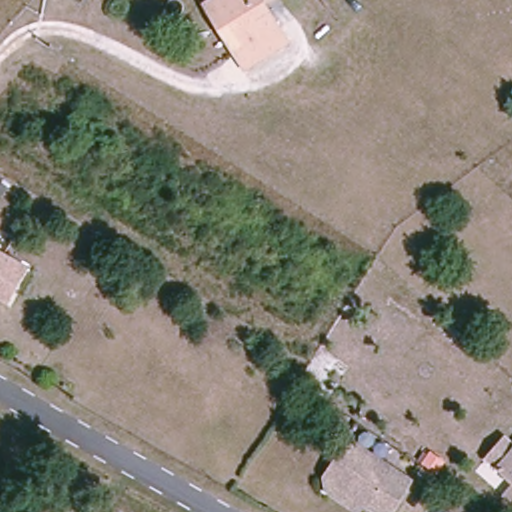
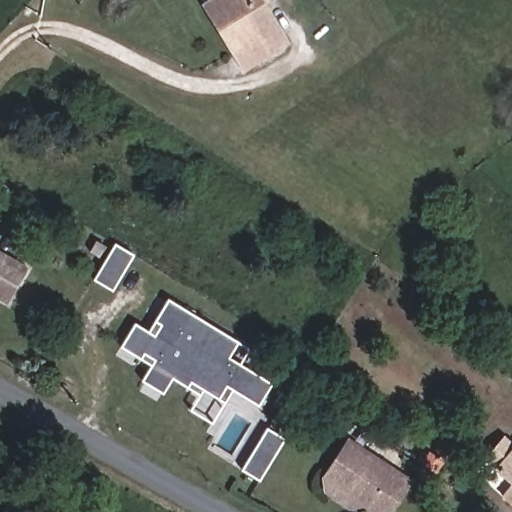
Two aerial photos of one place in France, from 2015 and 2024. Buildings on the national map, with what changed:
unchanged [(223,0),(285,0),(266,11),(287,49),(244,72),(228,44),(207,10),(220,2),(223,0)]
new [(120,244),(138,256),(116,292),(99,282),(120,244)]
unchanged [(7,303),(0,298),(0,250),(26,265),(7,303)]
new [(136,324),(149,333),(170,299),(250,349),(240,365),(271,383),(260,404),(234,389),(227,401),(205,389),(202,394),(174,378),(165,392),(144,380),(153,363),(124,347),(136,324)]
new [(274,429),(291,440),(264,482),(247,470),(274,429)]
unchanged [(391,512),(384,512),(373,506),(363,508),(348,499),(344,486),(329,477),(348,449),(349,447),(408,486),(391,512)]
unchanged [(500,471),(512,456),(512,482),(500,471)]
unchanged [(431,481),(426,489),(415,481),(419,474),(431,481)]
unchanged [(506,499),(512,492),(512,505),(506,499)]

